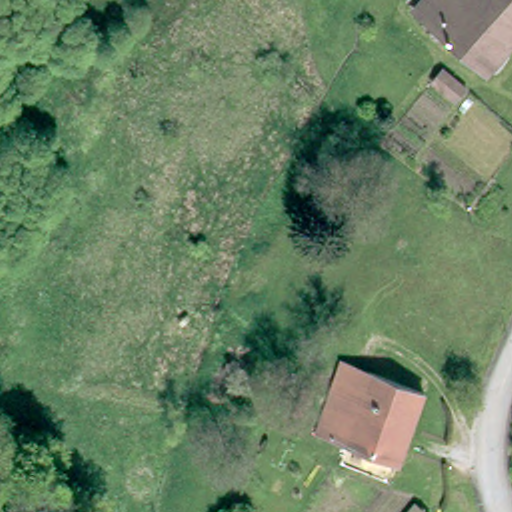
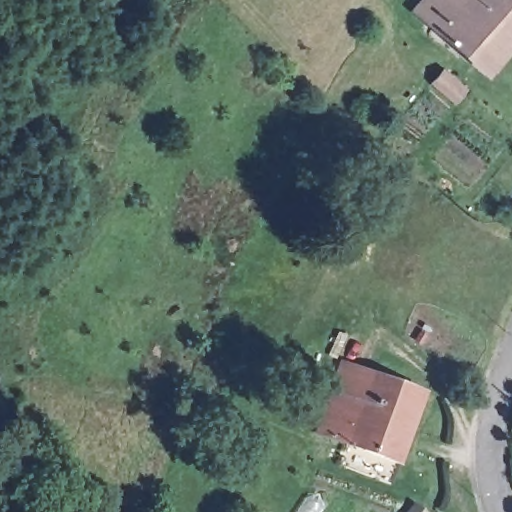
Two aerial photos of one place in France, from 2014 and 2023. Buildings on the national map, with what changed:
unchanged [(421,0),(460,0),(435,29),(413,9),(421,0)]
unchanged [(435,29),(460,0),(512,0),(512,40),(482,71),(435,29)]
unchanged [(440,99),(419,81),(431,67),(452,85),(440,99)]
unchanged [(375,443),(371,455),(356,448),(360,437),(347,432),(370,370),(422,388),(400,451),(375,443)]
unchanged [(408,501),(425,512),(400,512),(408,501)]

